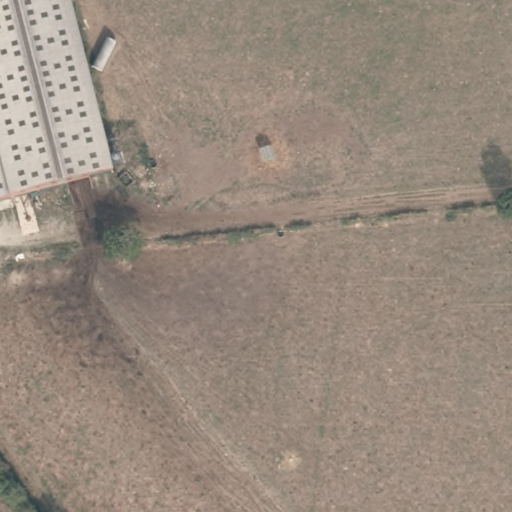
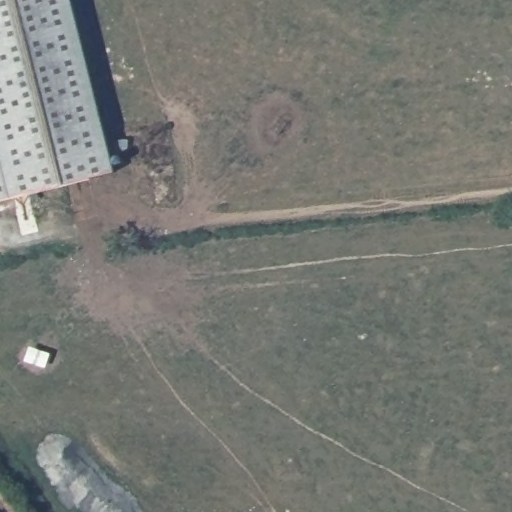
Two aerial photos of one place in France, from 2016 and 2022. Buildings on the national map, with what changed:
unchanged [(0,194),(0,0),(71,0),(108,169),(0,194)]

